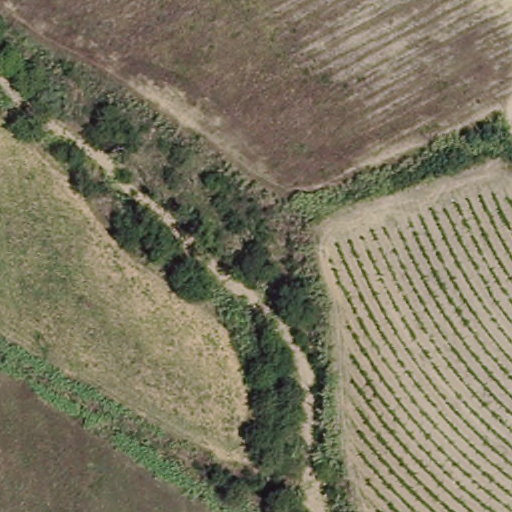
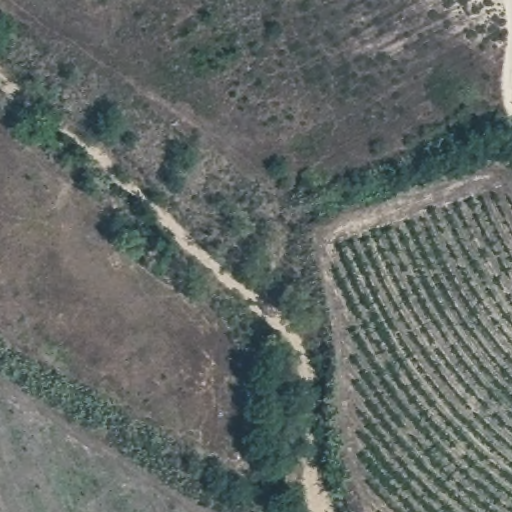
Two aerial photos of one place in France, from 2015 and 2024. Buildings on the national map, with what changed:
[]

